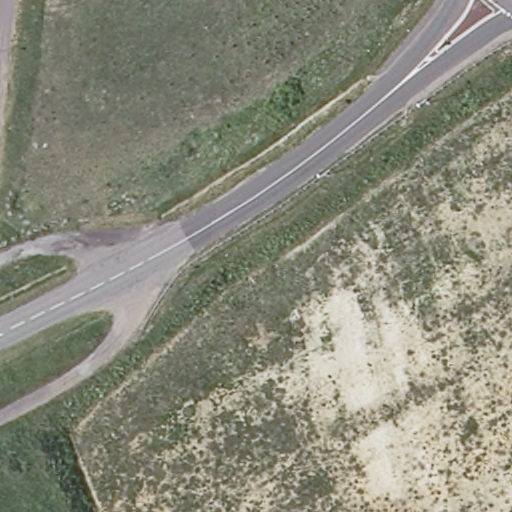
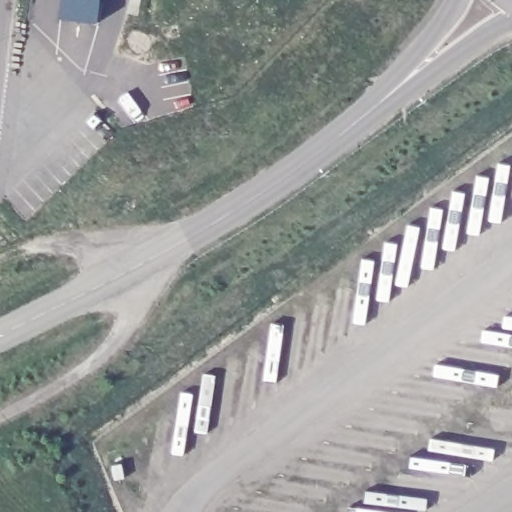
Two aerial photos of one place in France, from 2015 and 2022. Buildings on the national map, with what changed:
new [(97,22),(62,18),(63,0),(100,0),(97,22)]

